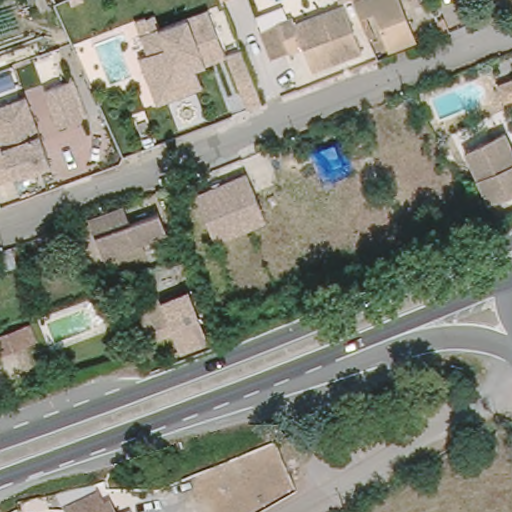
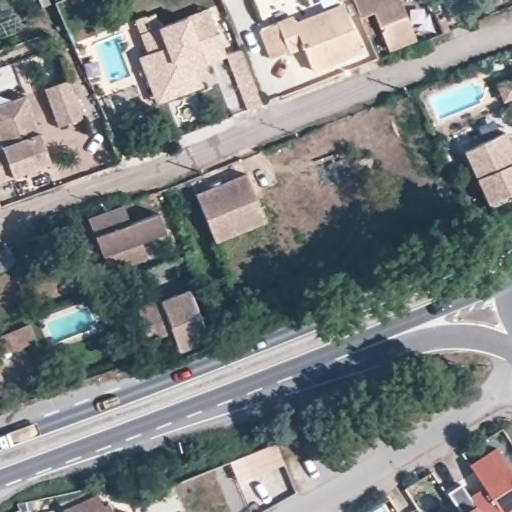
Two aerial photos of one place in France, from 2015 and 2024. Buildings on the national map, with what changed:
unchanged [(223,0),(225,0),(223,1),(223,0)]
unchanged [(416,39),(386,51),(376,26),(364,30),(352,0),(401,0),(416,39)]
unchanged [(261,28),(275,22),(290,16),(293,21),(338,5),(360,54),(311,70),(301,47),(287,53),(274,58),(261,28)]
unchanged [(156,100),(153,91),(150,82),(136,45),(145,42),(141,32),(208,6),(226,53),(195,65),(198,74),(202,83),(156,100)]
unchanged [(225,56),(243,47),(252,74),(235,82),(225,56)]
unchanged [(512,78),(512,97),(503,100),(497,84),(512,78)]
unchanged [(65,79),(78,117),(55,126),(41,88),(65,79)]
unchanged [(22,95),(27,108),(47,163),(0,181),(0,104),(22,95)]
unchanged [(478,178),(467,150),(456,122),(496,106),(508,132),(512,141),(512,184),(485,194),(478,178)]
unchanged [(233,235),(216,242),(197,195),(248,175),(262,209),(267,221),(233,235)]
unchanged [(133,197),(139,212),(164,203),(171,223),(110,245),(102,226),(97,210),(133,197)]
unchanged [(6,249),(13,264),(0,270),(0,251),(6,249)]
unchanged [(215,335),(186,345),(180,324),(155,333),(148,313),(141,293),(165,285),(168,294),(196,284),(215,335)]
unchanged [(0,352),(0,332),(32,320),(40,343),(1,355),(0,352)]
new [(482,485),(466,461),(495,443),(512,471),(512,512),(460,512),(473,504),(467,494),(482,485)]
demolished [(98,489),(108,512),(66,512),(62,504),(98,489)]
unchanged [(14,505),(43,498),(46,512),(16,512),(15,510),(14,505)]

